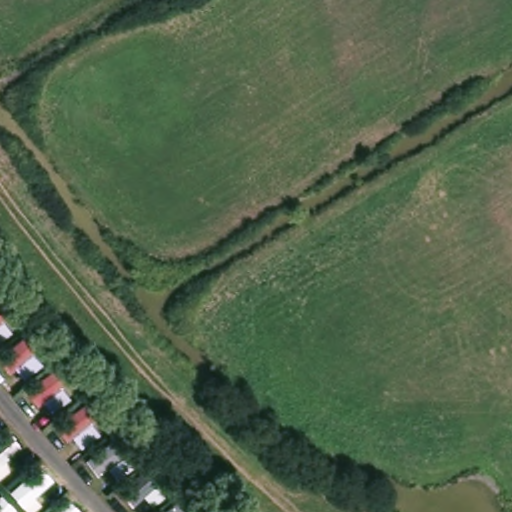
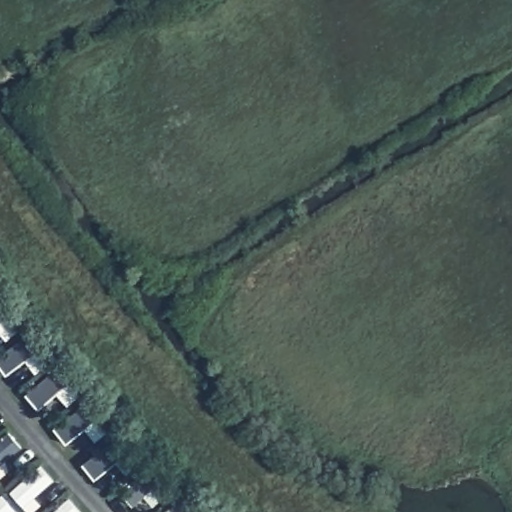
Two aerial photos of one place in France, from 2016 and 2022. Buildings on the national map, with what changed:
[]

